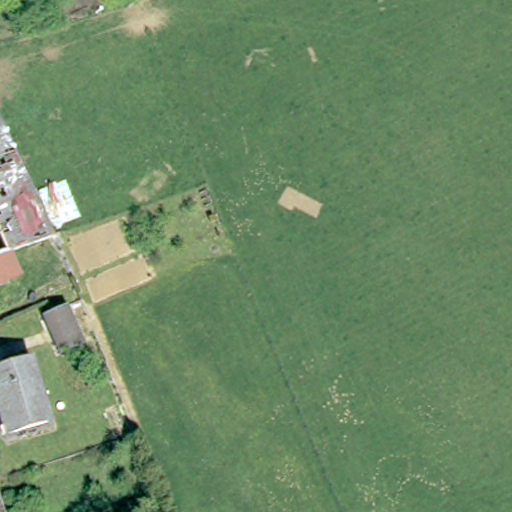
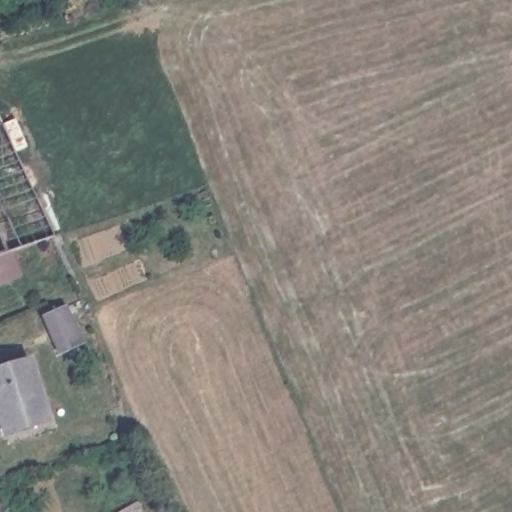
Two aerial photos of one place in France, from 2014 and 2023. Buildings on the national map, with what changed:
unchanged [(0,116),(54,235),(50,237),(33,242),(10,250),(0,253),(0,116)]
unchanged [(0,283),(0,253),(10,250),(20,275),(0,283)]
unchanged [(68,308),(84,346),(58,355),(41,318),(68,308)]
unchanged [(51,415),(8,428),(0,405),(0,365),(32,355),(51,415)]

